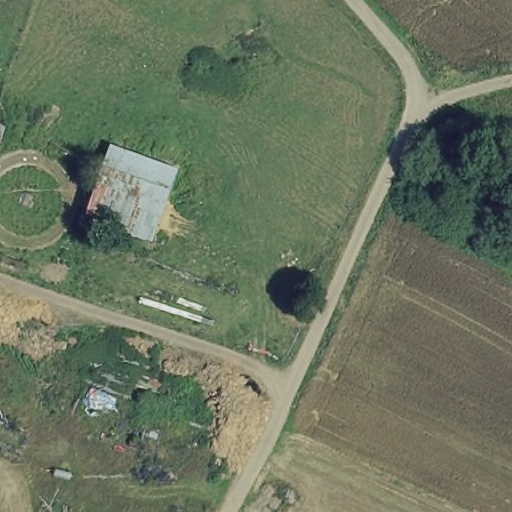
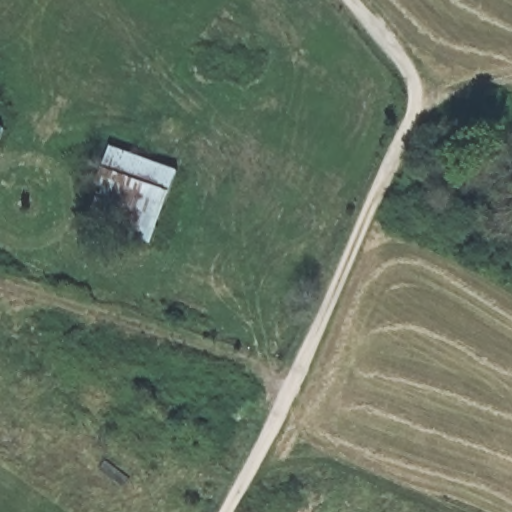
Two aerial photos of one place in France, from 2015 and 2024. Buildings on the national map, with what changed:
unchanged [(108,141),(177,166),(153,237),(83,212),(108,141)]

